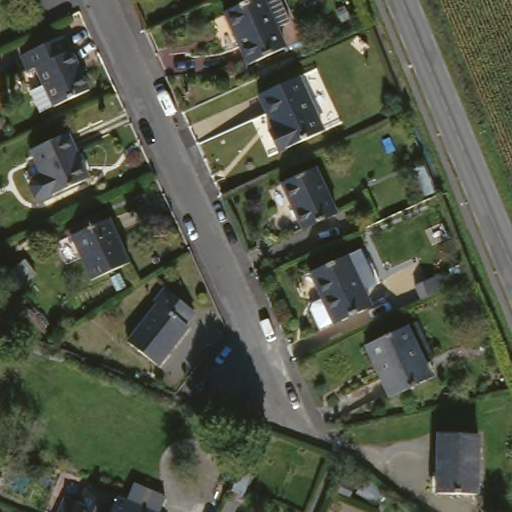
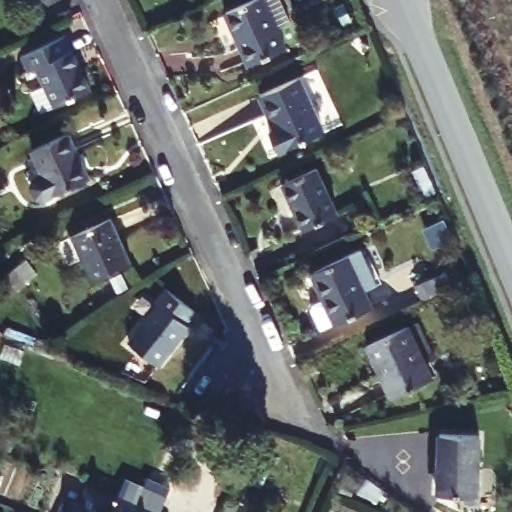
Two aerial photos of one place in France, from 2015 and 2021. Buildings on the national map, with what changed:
unchanged [(247,64),(224,10),(247,0),(265,0),(286,47),(247,64)]
unchanged [(54,105),(23,47),(65,29),(93,84),(54,105)]
unchanged [(318,123),(274,141),(267,124),(272,122),(258,88),(297,71),(318,123)]
unchanged [(90,175),(52,194),(42,199),(35,198),(30,186),(32,179),(42,174),(27,145),(66,126),(90,175)]
unchanged [(315,163),(335,209),(301,224),(281,177),(315,163)]
unchanged [(110,220),(130,262),(92,280),(72,239),(110,220)]
unchanged [(369,258),(374,268),(361,274),(373,300),(337,318),(337,317),(323,323),(313,303),(315,298),(326,293),(313,267),(349,249),(362,244),(369,258)]
unchanged [(391,278),(413,268),(420,283),(398,293),(391,278)]
unchanged [(154,302),(162,284),(193,304),(188,319),(160,367),(119,335),(154,302)]
unchanged [(403,323),(426,373),(387,392),(363,341),(403,323)]
unchanged [(458,371),(462,389),(439,394),(435,376),(458,371)]
unchanged [(481,428),(481,496),(432,494),(434,424),(481,428)]
unchanged [(68,494),(82,501),(89,486),(94,484),(115,494),(117,499),(120,494),(160,512),(60,512),(68,494)]

